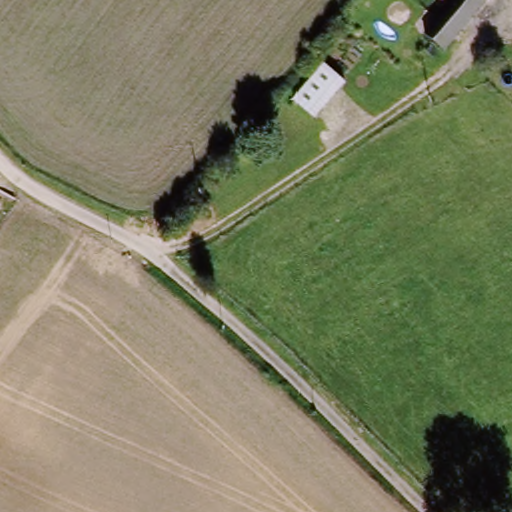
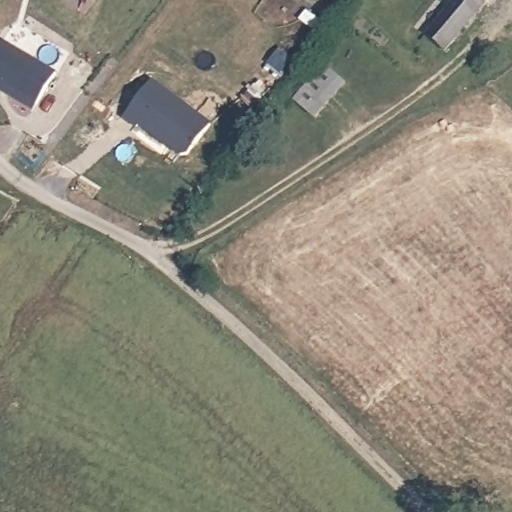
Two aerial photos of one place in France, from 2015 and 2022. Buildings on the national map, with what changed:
unchanged [(414,58),(459,0),(492,0),(433,73),(414,58)]
new [(3,40),(58,72),(34,113),(8,97),(9,94),(0,89),(0,46),(3,40)]
new [(171,158),(129,125),(127,128),(114,119),(149,73),(204,115),(171,158)]

